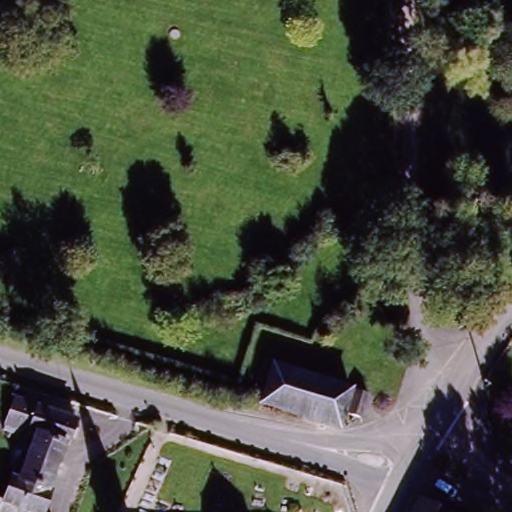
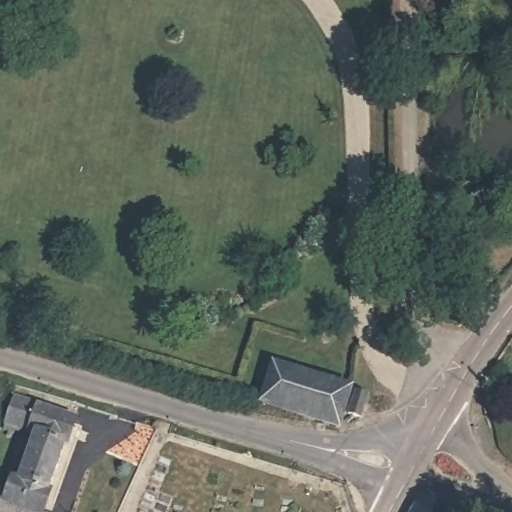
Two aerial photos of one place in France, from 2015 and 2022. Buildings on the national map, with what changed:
unchanged [(296,406),(265,390),(274,363),(350,390),(365,396),(360,412),(356,418),(338,418),(296,406)]
unchanged [(0,493),(3,480),(14,482),(27,437),(0,428),(0,414),(3,403),(36,415),(73,426),(44,512),(0,512),(0,493)]
unchanged [(426,501),(453,512),(420,512),(426,501)]

